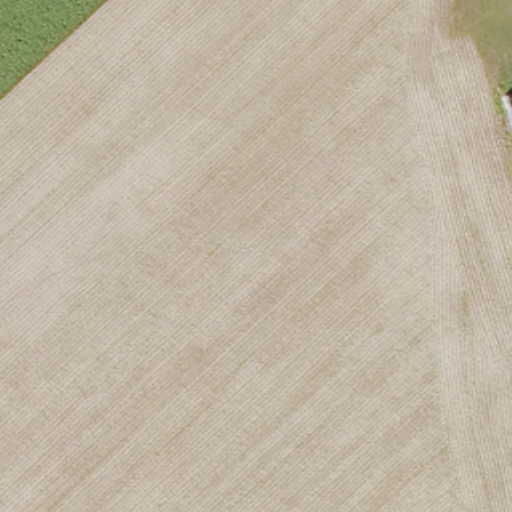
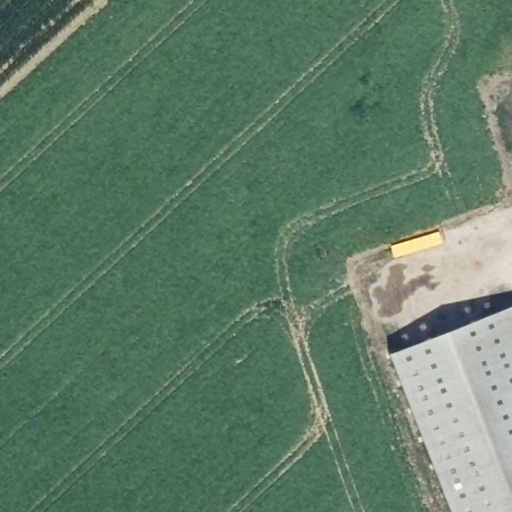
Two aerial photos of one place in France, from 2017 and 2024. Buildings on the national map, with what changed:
new [(456,512),(397,356),(512,315),(512,512),(456,512)]

